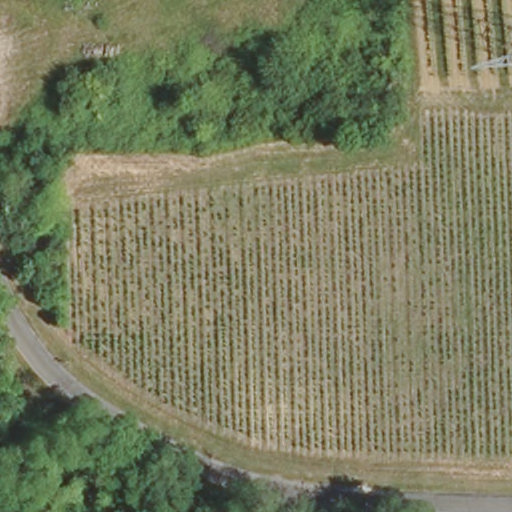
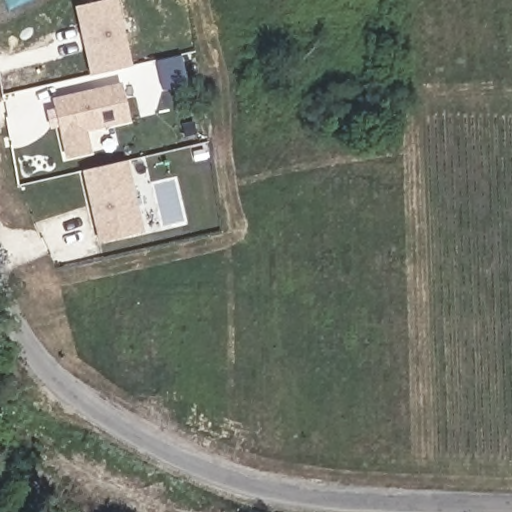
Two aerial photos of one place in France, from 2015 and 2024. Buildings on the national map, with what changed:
new [(100,0),(118,0),(133,66),(90,76),(74,6),(100,0)]
new [(164,87),(158,61),(180,56),(187,82),(164,87)]
new [(92,153),(65,159),(51,97),(122,82),(131,122),(87,132),(92,153)]
new [(81,171),(128,161),(144,232),(98,242),(81,171)]

